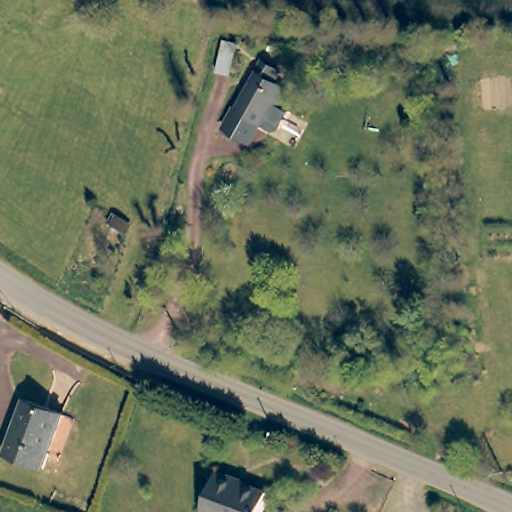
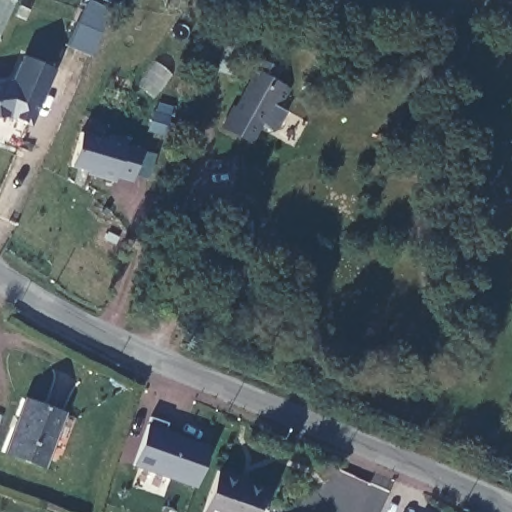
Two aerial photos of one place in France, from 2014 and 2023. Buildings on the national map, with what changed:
new [(72,49),(93,7),(109,12),(90,54),(72,49)]
unchanged [(236,45),(231,72),(216,70),(221,42),(236,45)]
unchanged [(220,123),(230,104),(232,105),(253,68),(251,67),(257,56),(275,65),(270,76),(285,85),(275,101),(285,106),(275,124),(268,126),(256,120),(247,137),(220,123)]
new [(55,68),(30,127),(6,118),(0,119),(0,80),(11,79),(20,57),(55,68)]
new [(103,139),(104,136),(125,142),(124,146),(141,152),(132,181),(116,176),(112,182),(87,176),(90,172),(71,166),(82,133),(103,139)]
unchanged [(61,415),(47,452),(41,469),(1,454),(22,400),(61,415)]
new [(194,488),(132,464),(151,418),(165,423),(162,430),(210,446),(194,488)]
unchanged [(265,493),(258,512),(202,512),(217,473),(232,479),(232,480),(265,493)]

